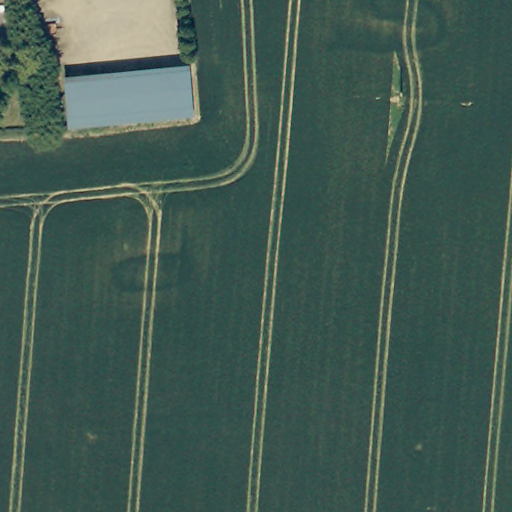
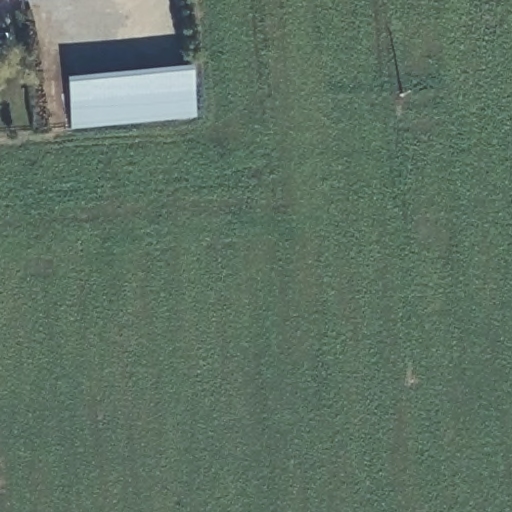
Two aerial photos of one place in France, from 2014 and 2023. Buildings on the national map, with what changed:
unchanged [(21,0),(51,0),(22,4),(21,0)]
unchanged [(193,69),(199,114),(76,130),(70,85),(193,69)]

